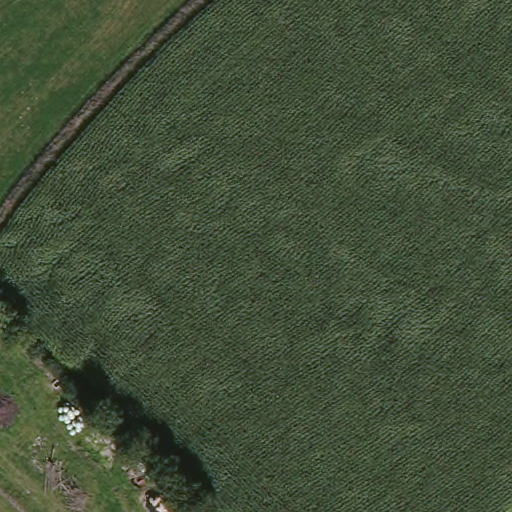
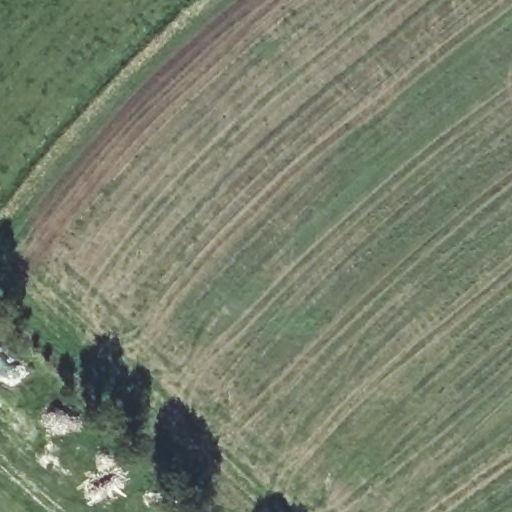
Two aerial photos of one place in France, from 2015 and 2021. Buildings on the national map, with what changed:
[]

